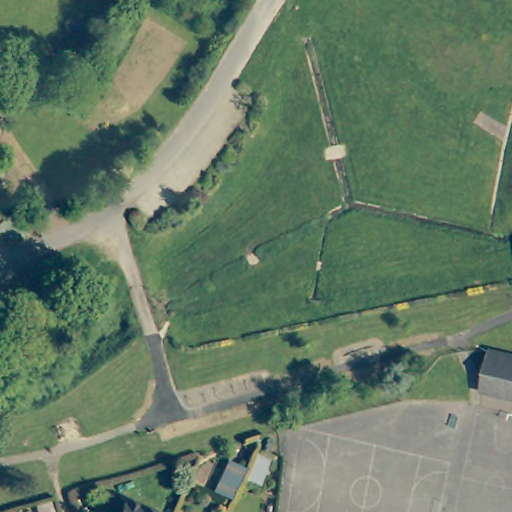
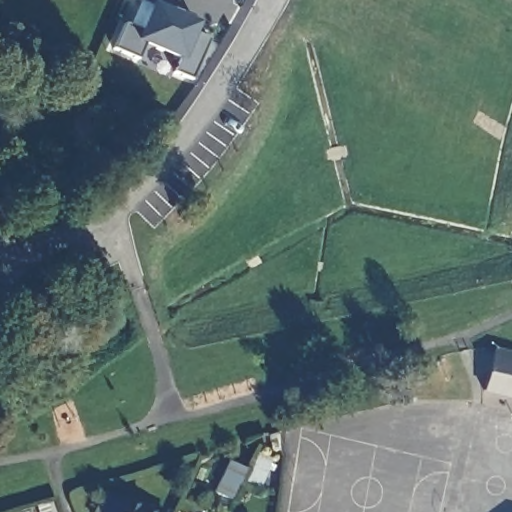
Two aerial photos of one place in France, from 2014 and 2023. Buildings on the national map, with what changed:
new [(172,12),(198,23),(194,33),(208,39),(191,80),(174,73),(180,61),(145,46),(137,59),(113,49),(124,23),(129,26),(140,0),(139,0),(176,0),(172,12)]
unchanged [(512,355),(512,398),(483,391),(492,350),(512,355)]
unchanged [(230,500),(212,492),(227,462),(244,470),(230,500)]
unchanged [(117,496),(150,512),(109,512),(116,497),(117,496)]
unchanged [(37,512),(36,507),(51,502),(53,512),(37,512)]

